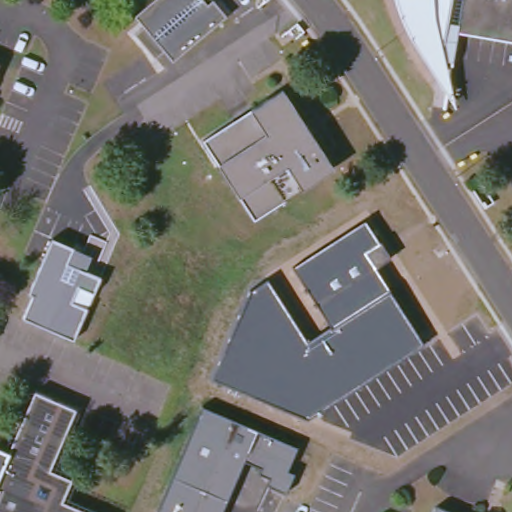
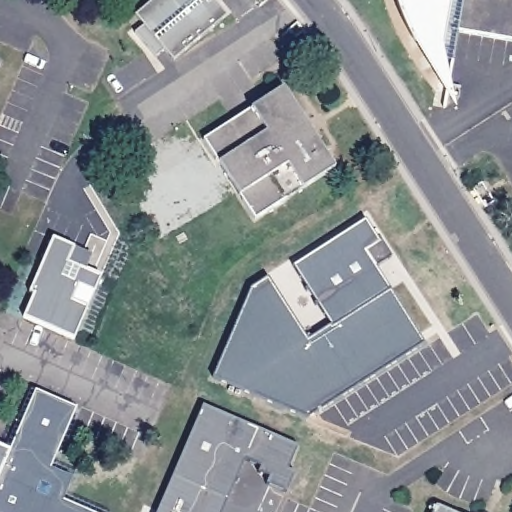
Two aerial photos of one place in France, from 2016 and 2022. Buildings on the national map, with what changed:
unchanged [(164,55),(155,63),(133,38),(143,30),(135,20),(158,0),(214,0),(214,2),(226,18),(172,64),(164,55)]
unchanged [(429,71),(423,62),(417,52),(409,36),(402,18),(397,8),(395,0),(512,0),(512,39),(448,26),(442,56),(432,54),(429,71)]
unchanged [(287,91),(335,169),(257,221),(207,143),(287,91)]
unchanged [(335,327),(296,267),(366,221),(381,244),(383,243),(393,258),(378,269),(392,290),(335,327)]
unchanged [(95,295),(80,288),(73,303),(88,310),(75,342),(24,320),(33,297),(30,295),(52,240),(75,249),(73,252),(92,259),(86,272),(102,279),(95,295)]
unchanged [(388,292),(423,345),(308,418),(213,377),(250,290),(267,280),(307,342),(335,327),(388,292)]
unchanged [(10,451),(12,445),(10,441),(15,440),(17,435),(15,430),(20,429),(22,424),(20,420),(24,419),(26,413),(25,409),(28,408),(32,403),(30,398),(33,397),(37,392),(77,409),(75,413),(78,418),(73,419),(70,425),(73,429),(67,430),(65,436),(68,441),(63,442),(60,446),(63,451),(57,453),(55,458),(58,462),(53,463),(51,469),(62,474),(72,477),(68,490),(62,501),(66,503),(72,500),(73,506),(76,507),(82,504),(83,511),(85,512),(0,512),(0,447),(10,451)]
unchanged [(263,468),(247,461),(231,500),(175,476),(195,429),(205,406),(297,446),(287,470),(295,474),(292,481),(287,493),(270,485),(272,478),(261,473),(263,468)]
unchanged [(226,512),(159,512),(175,476),(231,500),(226,512)]
unchanged [(433,505),(449,512),(430,512),(433,505)]
unchanged [(93,509),(94,512),(88,512),(93,509)]

